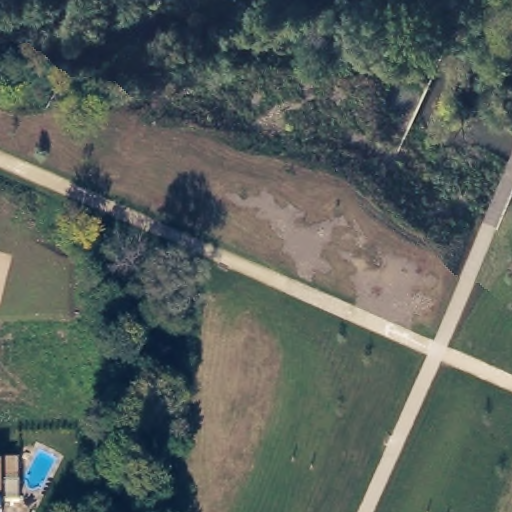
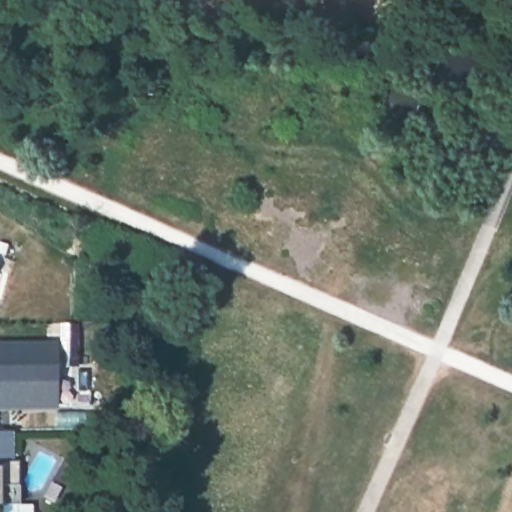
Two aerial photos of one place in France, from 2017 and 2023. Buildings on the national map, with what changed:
new [(57,343),(57,406),(27,407),(0,407),(0,344),(57,343)]
unchanged [(18,460),(19,502),(2,506),(2,512),(0,512),(0,460),(18,460)]

